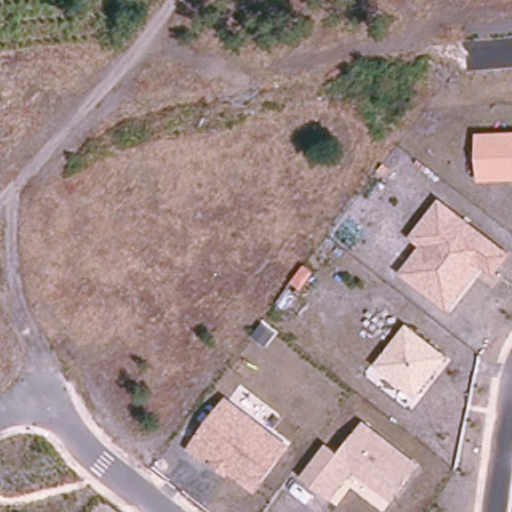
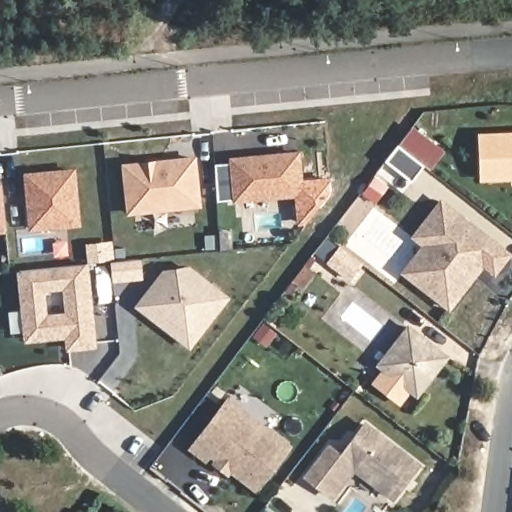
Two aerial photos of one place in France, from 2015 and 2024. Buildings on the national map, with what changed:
new [(434,169),(428,164),(405,146),(417,130),(441,148),(447,153),(434,169)]
unchanged [(512,180),(479,182),(477,133),(512,132),(512,180)]
new [(301,154),(304,194),(238,200),(234,160),(301,154)]
new [(197,159),(202,205),(132,213),(127,166),(197,159)]
new [(75,173),(80,227),(33,231),(28,178),(75,173)]
new [(3,186),(8,232),(0,233),(0,186),(3,186)]
unchanged [(493,270),(478,257),(468,270),(474,273),(448,308),(419,287),(442,257),(415,237),(440,203),(504,254),(493,270)]
new [(88,266),(96,348),(72,350),(70,338),(29,342),(22,273),(88,266)]
new [(168,274),(194,271),(231,300),(194,347),(143,307),(168,274)]
unchanged [(417,393),(380,365),(409,327),(444,355),(417,393)]
unchanged [(292,443),(255,491),(208,457),(204,462),(187,449),(226,397),(292,443)]
unchanged [(417,465),(393,496),(354,467),(332,494),(306,474),(327,446),(342,455),(365,424),(417,465)]

